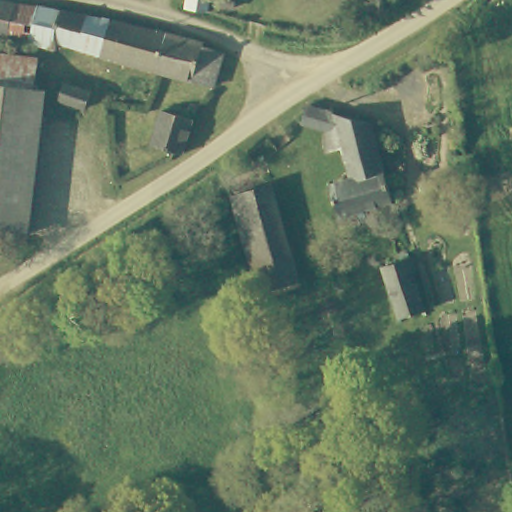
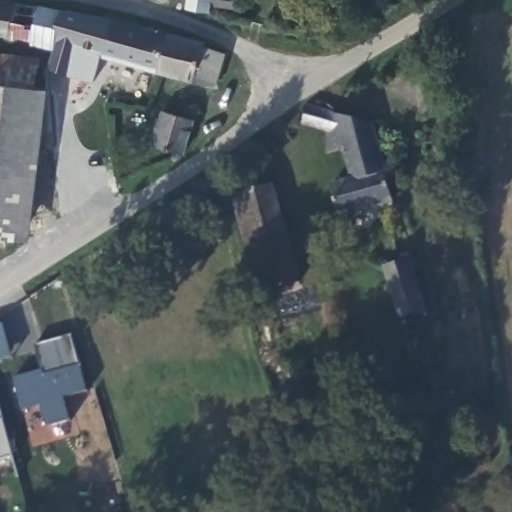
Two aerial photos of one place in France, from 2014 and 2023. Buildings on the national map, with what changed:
unchanged [(52,36),(50,44),(27,38),(6,32),(5,35),(0,34),(0,0),(20,0),(35,3),(109,16),(99,50),(52,36)]
unchanged [(210,10),(210,13),(188,9),(189,4),(190,0),(237,0),(236,9),(223,7),(211,5),(210,10)]
unchanged [(201,44),(220,49),(209,83),(192,78),(170,71),(154,67),(99,50),(109,16),(165,31),(182,35),(201,40),(201,44)]
unchanged [(42,58),(22,238),(0,236),(0,53),(42,58)]
unchanged [(87,91),(80,107),(56,96),(62,80),(87,91)]
unchanged [(325,106),(375,122),(396,197),(367,206),(342,213),(332,180),(355,175),(346,144),(327,148),(330,126),(303,119),(308,102),(325,106)]
unchanged [(186,112),(195,116),(184,150),(154,141),(166,106),(186,112)]
unchanged [(273,185),(301,282),(264,292),(236,195),(273,185)]
unchanged [(407,257),(422,305),(397,313),(381,265),(407,257)]
new [(64,398),(72,421),(46,429),(39,406),(22,412),(12,379),(41,371),(34,346),(71,336),(90,394),(64,398)]
new [(0,462),(0,411),(12,457),(0,462)]

